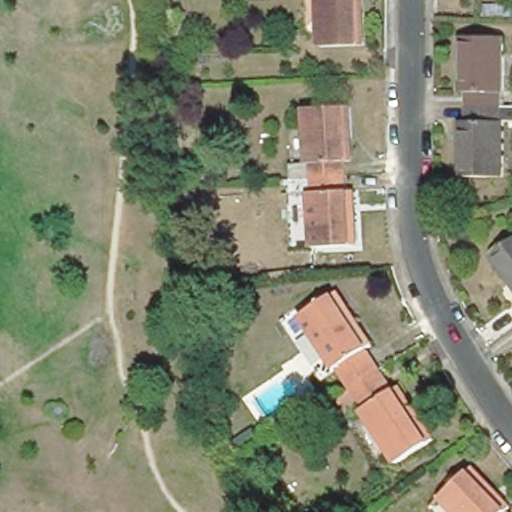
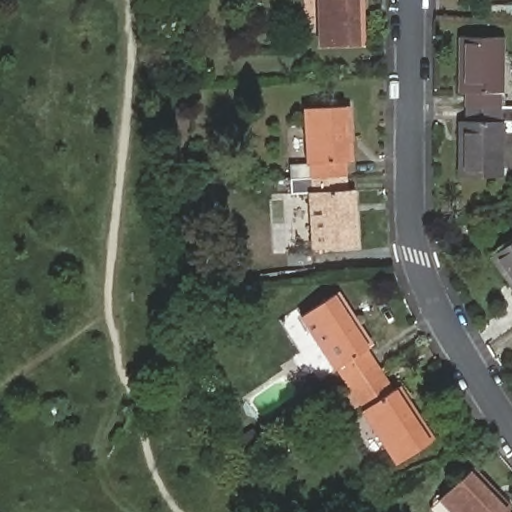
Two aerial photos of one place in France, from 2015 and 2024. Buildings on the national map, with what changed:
unchanged [(322,47),(319,0),(362,0),(365,46),(322,47)]
unchanged [(489,0),(512,0),(489,1),(489,0)]
unchanged [(471,96),(465,97),(466,41),(507,41),(507,96),(506,96),(506,111),(470,111),(471,96)]
unchanged [(292,177),(292,165),(309,163),(307,109),(348,107),(352,160),(347,161),(347,175),(292,177)]
unchanged [(506,111),(512,110),(512,126),(507,126),(505,180),(466,180),(466,125),(470,125),(470,111),(506,111)]
unchanged [(347,190),(354,190),(357,245),(314,248),(311,192),(293,192),(292,177),(347,175),(347,190)]
unchanged [(491,259),(512,244),(512,288),(491,259)]
unchanged [(352,391),(339,372),(336,373),(302,319),(338,297),(372,349),(368,352),(380,372),(352,391)]
unchanged [(394,395),(399,392),(432,443),(398,466),(364,414),(361,409),(348,417),(337,400),(352,391),(380,372),(394,395)]
unchanged [(438,501),(469,472),(507,511),(505,512),(448,512),(438,501)]

